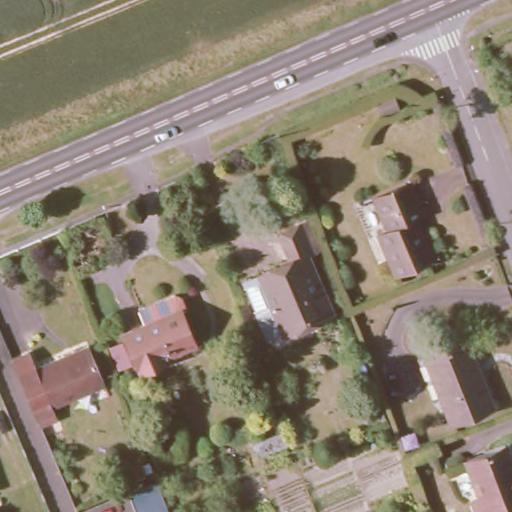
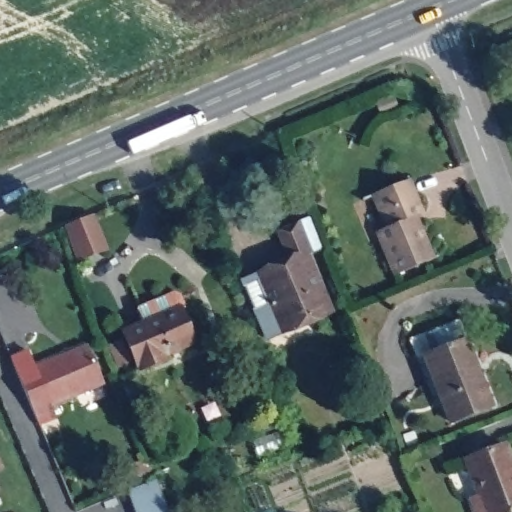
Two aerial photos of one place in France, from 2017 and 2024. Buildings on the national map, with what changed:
unchanged [(387,256),(375,226),(385,222),(371,189),(408,174),(421,207),(415,210),(432,253),(396,268),(392,269),(387,256)]
new [(103,249),(76,261),(63,225),(91,214),(103,249)]
unchanged [(242,281),(290,261),(277,232),(309,219),(320,249),(306,255),(330,311),(266,338),(242,281)]
unchanged [(126,331),(159,318),(155,309),(177,300),(181,308),(183,307),(198,343),(141,367),(126,331)]
unchanged [(27,346),(34,362),(86,340),(102,380),(51,401),(55,412),(38,419),(10,353),(27,346)]
unchanged [(458,421),(433,355),(474,340),(500,405),(458,421)]
unchanged [(252,441),(280,431),(285,446),(257,456),(252,441)]
unchanged [(512,454),(512,512),(490,512),(468,458),(508,444),(512,454)]
unchanged [(125,472),(141,466),(145,476),(129,482),(125,472)]
unchanged [(0,494),(0,488),(2,493),(0,494)]

